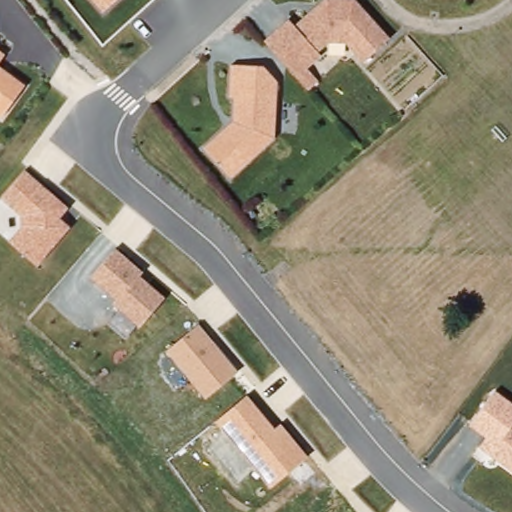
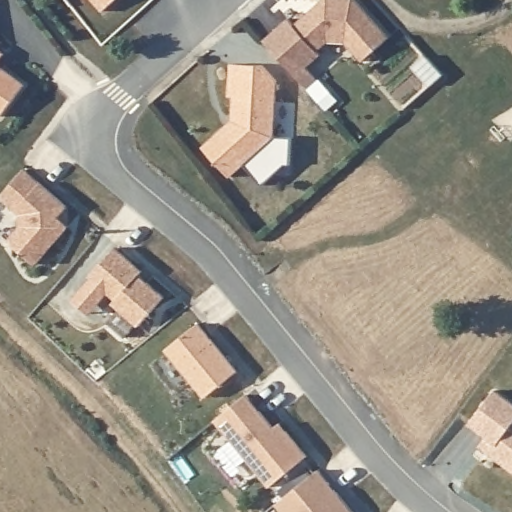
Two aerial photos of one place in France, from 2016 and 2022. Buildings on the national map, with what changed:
unchanged [(92,0),(110,0),(100,9),(92,0)]
unchanged [(359,61),(342,41),(325,41),(314,51),(317,54),(303,67),(314,80),(304,89),(290,73),(262,41),(260,40),(285,18),(291,25),(314,4),(319,0),(353,0),(385,37),(359,61)]
unchanged [(3,55),(1,71),(23,87),(0,121),(0,52),(3,55)]
unchanged [(232,121),(232,98),(227,98),(228,65),(260,66),(274,84),(272,140),(226,177),(201,146),(232,121)]
unchanged [(67,208),(58,218),(69,227),(36,266),(6,241),(19,225),(18,214),(0,200),(0,196),(22,170),(67,208)]
unchanged [(142,272),(138,277),(164,298),(136,327),(110,303),(113,300),(87,277),(113,248),(142,272)]
unchanged [(236,372),(203,399),(164,351),(197,324),(236,372)]
unchanged [(484,438),(468,426),(493,391),(512,403),(512,474),(477,448),(484,438)]
unchanged [(273,428),(280,423),(308,458),(267,489),(213,421),(246,395),(273,428)]
new [(316,472),(350,512),(279,512),(274,506),(316,472)]

